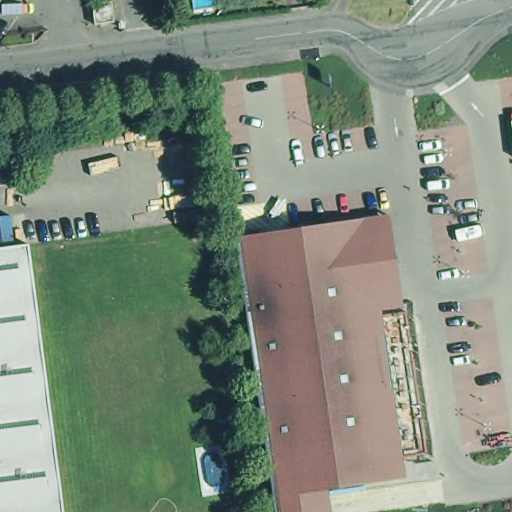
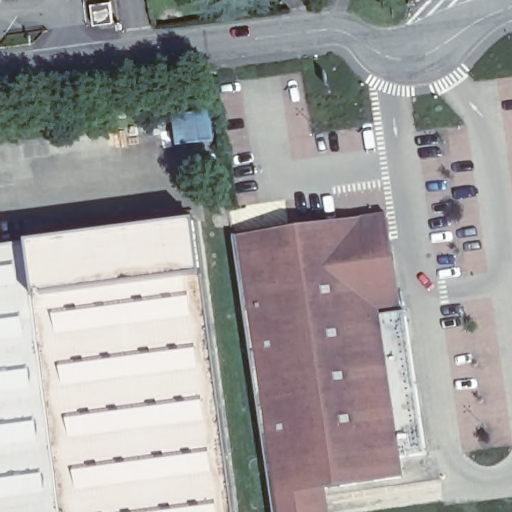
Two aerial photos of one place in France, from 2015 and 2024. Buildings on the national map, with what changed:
unchanged [(86,2),(105,1),(108,21),(89,24),(86,2)]
unchanged [(241,240),(388,216),(400,310),(381,313),(404,480),(328,494),(330,512),(280,512),(241,240)]
new [(29,246),(197,222),(204,277),(35,298),(29,246)]
unchanged [(35,298),(62,512),(0,512),(0,249),(29,246),(35,298)]
new [(35,298),(204,277),(234,512),(62,512),(35,298)]
new [(427,455),(402,458),(381,313),(400,310),(407,310),(427,455)]

